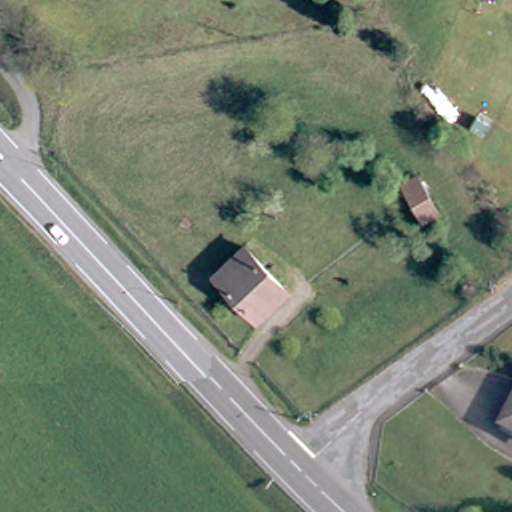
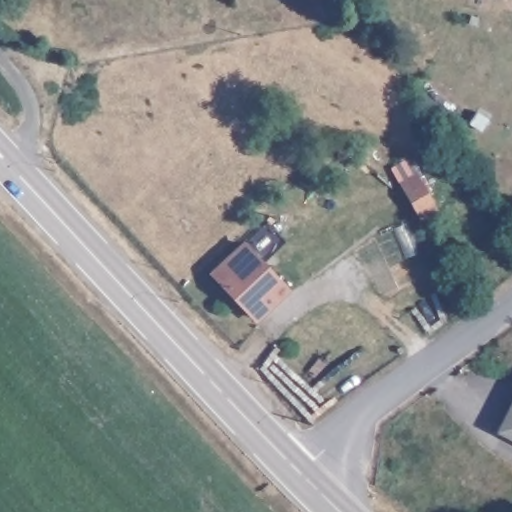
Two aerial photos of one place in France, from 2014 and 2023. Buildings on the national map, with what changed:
unchanged [(445,201),(431,209),(408,172),(423,164),(445,201)]
unchanged [(210,266),(238,239),(281,282),(253,310),(210,266)]
unchanged [(497,436),(512,408),(512,445),(497,436)]

